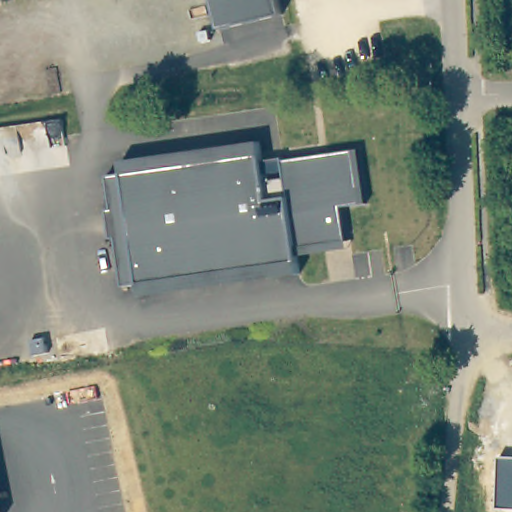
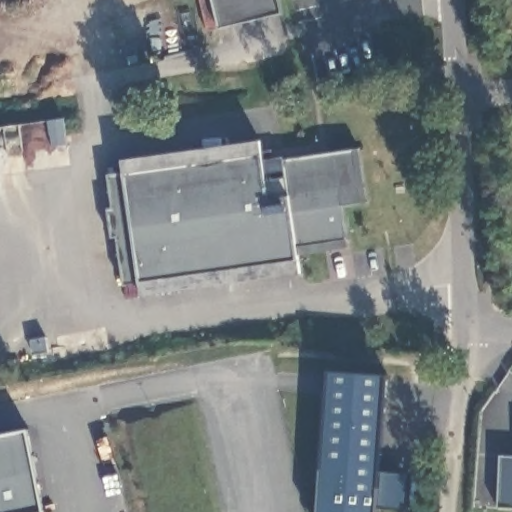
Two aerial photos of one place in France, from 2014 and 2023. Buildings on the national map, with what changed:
unchanged [(282,13),(220,27),(214,0),(279,0),(282,13)]
unchanged [(261,140),(264,161),(283,157),(283,160),(359,149),(367,202),(342,206),(348,247),(300,254),(302,272),(143,294),(141,283),(125,285),(117,238),(112,239),(108,209),(113,208),(108,175),(123,173),(122,160),(261,140)]
unchanged [(46,336),(49,352),(34,355),(30,339),(46,336)]
new [(384,375),(376,471),(406,473),(403,509),(375,508),(375,512),(318,512),(329,373),(384,375)]
unchanged [(499,456),(512,457),(512,509),(496,508),(499,456)]

